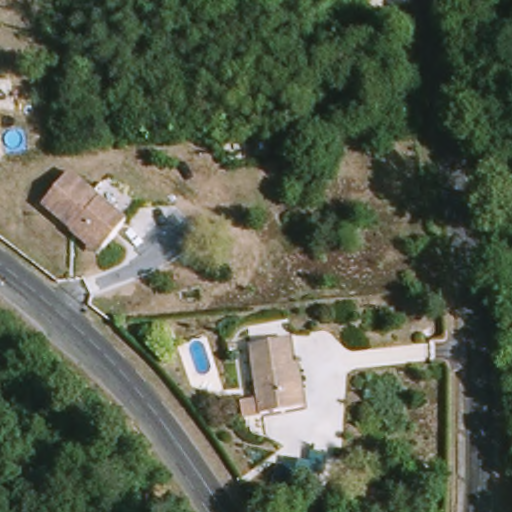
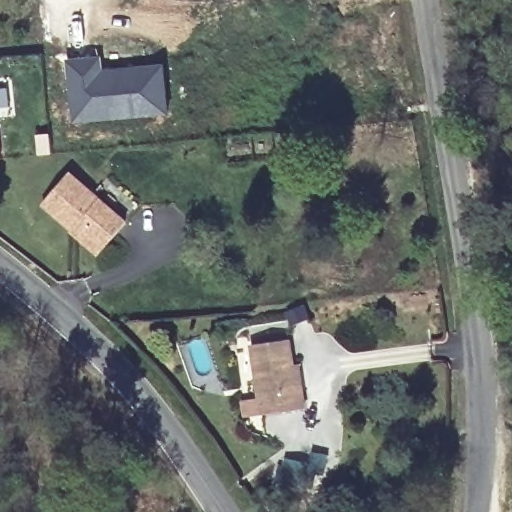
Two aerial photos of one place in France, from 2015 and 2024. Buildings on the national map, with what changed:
new [(101,54),(104,67),(165,61),(169,115),(70,124),(65,58),(101,54)]
unchanged [(0,158),(0,136),(2,158),(0,158)]
unchanged [(80,230),(83,227),(52,202),(79,170),(136,219),(115,245),(108,253),(80,230)]
unchanged [(316,386),(318,403),(271,408),(264,338),(304,334),(307,360),(313,359),(316,386)]

